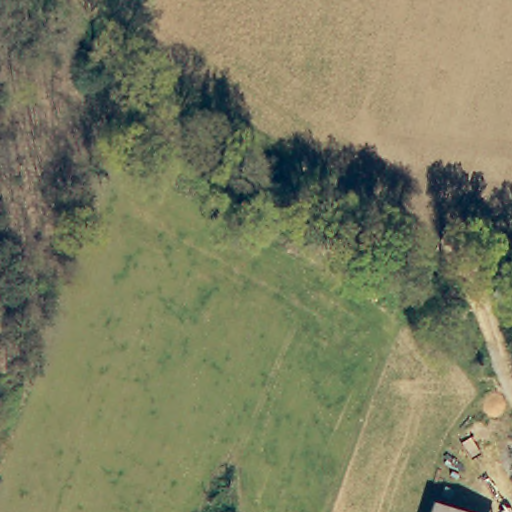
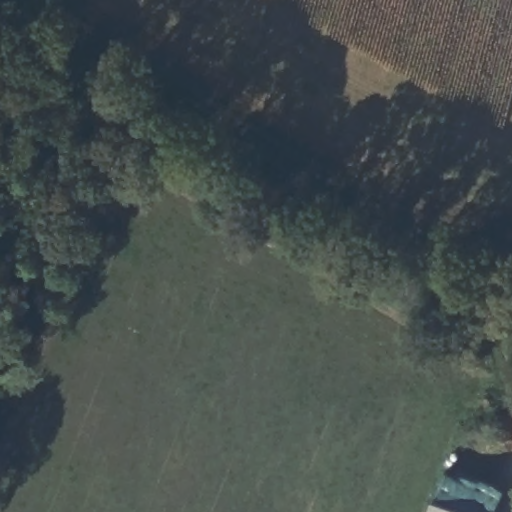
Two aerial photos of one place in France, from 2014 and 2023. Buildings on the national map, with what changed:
unchanged [(425,503),(458,512),(423,512),(425,503)]

